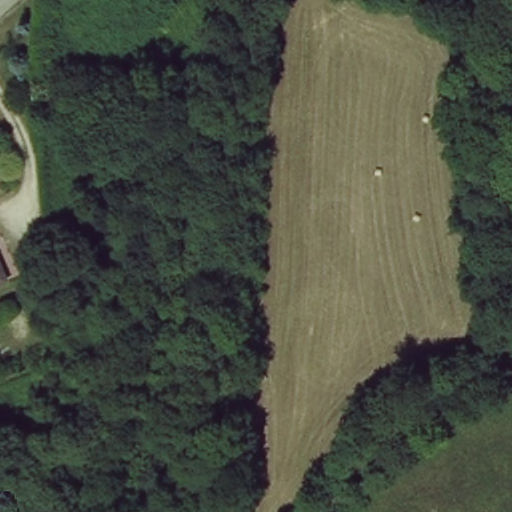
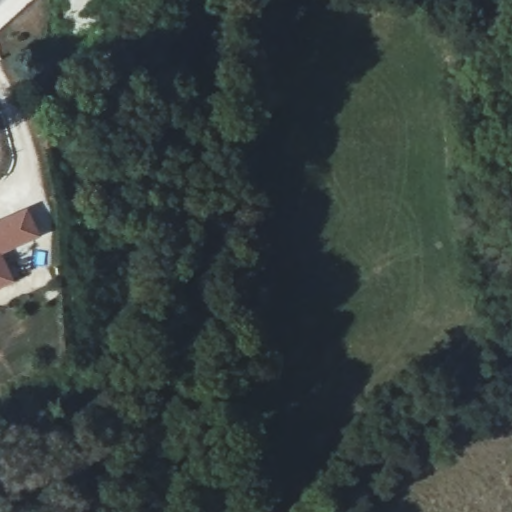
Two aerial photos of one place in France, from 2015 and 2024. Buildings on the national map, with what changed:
new [(26,207),(40,235),(1,254),(14,282),(0,288),(0,219),(26,207)]
demolished [(5,278),(0,280),(0,267),(5,278)]

